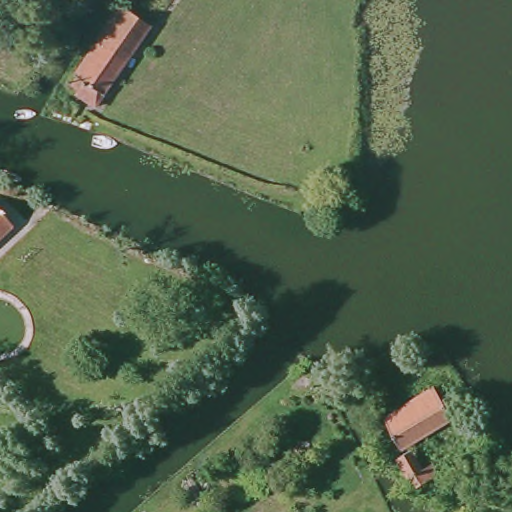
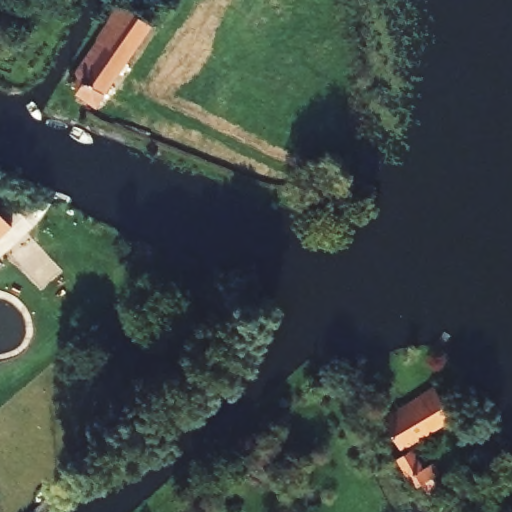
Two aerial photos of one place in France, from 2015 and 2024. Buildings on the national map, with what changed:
unchanged [(150,31),(95,111),(76,100),(79,95),(70,88),(75,77),(72,76),(120,10),(150,31)]
unchanged [(22,220),(0,239),(0,200),(22,220)]
unchanged [(387,417),(438,389),(457,421),(405,449),(387,417)]
unchanged [(415,450),(425,469),(438,462),(445,476),(420,488),(415,478),(410,481),(399,457),(415,450)]

